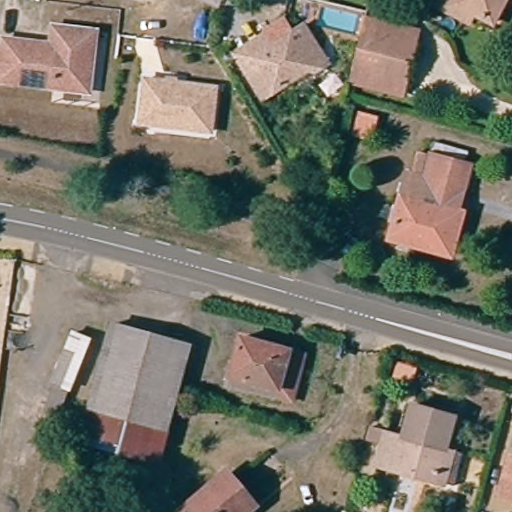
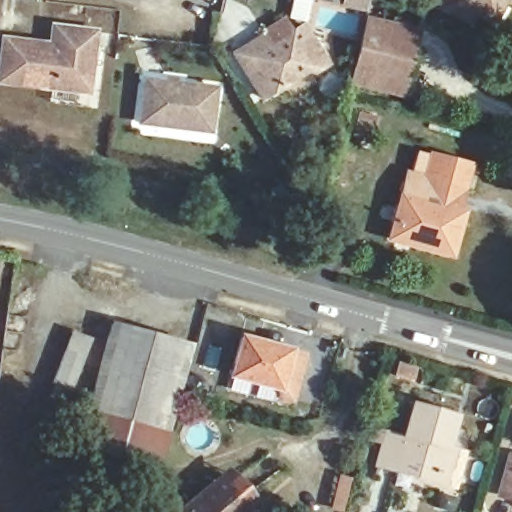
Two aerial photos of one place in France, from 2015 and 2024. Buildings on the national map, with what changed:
unchanged [(490,25),(470,15),(466,24),(433,6),(436,0),(503,0),(501,4),(490,25)]
unchanged [(356,41),(346,39),(352,15),(362,17),(356,41)]
unchanged [(404,97),(354,84),(370,21),(420,32),(404,97)]
unchanged [(243,67),(235,56),(264,37),(272,48),(306,27),(330,65),(317,74),(309,72),(264,101),(243,67)]
unchanged [(0,45),(0,41),(27,44),(41,46),(48,47),(50,28),(92,32),(85,94),(0,84),(0,45)]
unchanged [(208,133),(137,125),(142,81),(213,90),(208,133)]
unchanged [(392,245),(410,181),(426,186),(432,162),(472,172),(466,197),(460,216),(465,217),(453,262),(392,245)]
unchanged [(110,326),(187,348),(165,430),(87,408),(110,326)]
unchanged [(60,415),(45,407),(57,380),(55,379),(73,330),(90,335),(70,385),(71,386),(60,415)]
unchanged [(233,373),(243,333),(307,351),(294,400),(279,396),(231,383),(233,373)]
unchanged [(414,376),(399,371),(401,362),(416,366),(414,376)]
unchanged [(442,486),(373,467),(382,433),(401,438),(410,406),(453,418),(447,447),(452,449),(460,451),(449,488),(442,486)]
unchanged [(156,465),(77,443),(87,408),(165,430),(156,465)]
unchanged [(373,448),(362,445),(367,429),(377,432),(373,448)]
unchanged [(501,492),(512,452),(512,494),(501,492)]
unchanged [(218,470),(224,465),(250,497),(245,502),(234,512),(174,512),(172,510),(218,470)]

